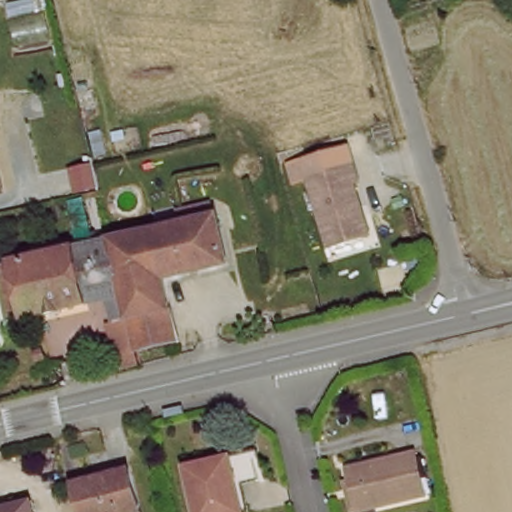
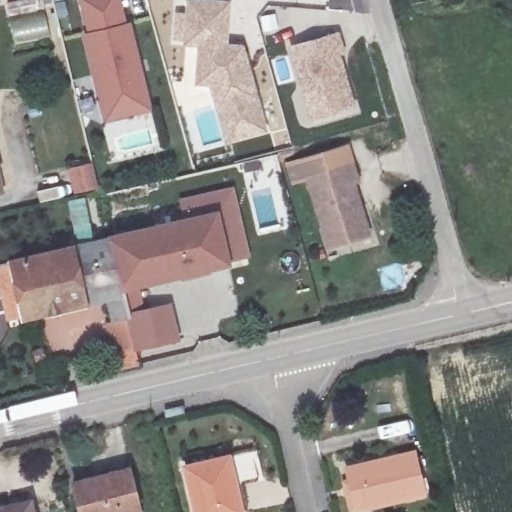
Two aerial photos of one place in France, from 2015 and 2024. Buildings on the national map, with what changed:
new [(104,121),(83,34),(87,34),(80,0),(121,0),(126,25),(131,23),(152,110),(104,121)]
new [(233,1),(229,43),(245,45),(269,131),(226,144),(212,90),(207,85),(195,85),(198,47),(183,45),(187,0),(218,0),(233,1)]
new [(327,0),(369,0),(370,12),(327,9),(327,0)]
new [(340,30),(357,108),(310,122),(286,45),(340,30)]
new [(347,145),(354,170),(310,181),(293,186),(287,162),(347,145)]
unchanged [(354,170),(358,187),(353,189),(367,241),(329,251),(310,181),(354,170)]
new [(236,186),(252,256),(223,263),(212,215),(185,221),(180,200),(236,186)]
unchanged [(212,215),(223,263),(162,278),(174,335),(133,345),(127,313),(110,238),(212,215)]
unchanged [(108,317),(104,295),(22,316),(10,260),(110,238),(127,313),(108,317)]
unchanged [(227,450),(241,512),(192,512),(181,460),(227,450)]
unchanged [(412,455),(421,494),(356,508),(348,470),(412,455)]
unchanged [(135,462),(146,512),(76,512),(69,478),(135,462)]
unchanged [(34,512),(0,512),(0,509),(31,501),(34,512)]

